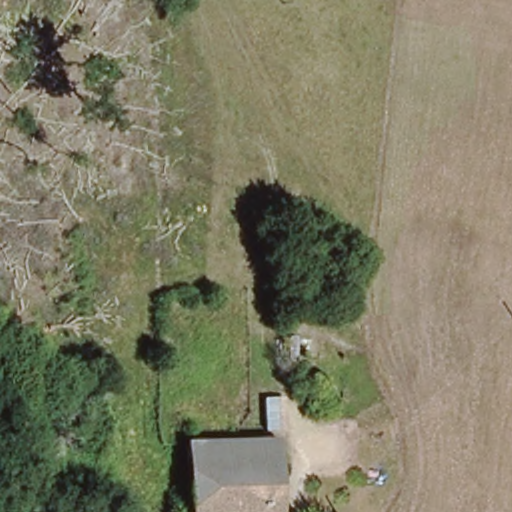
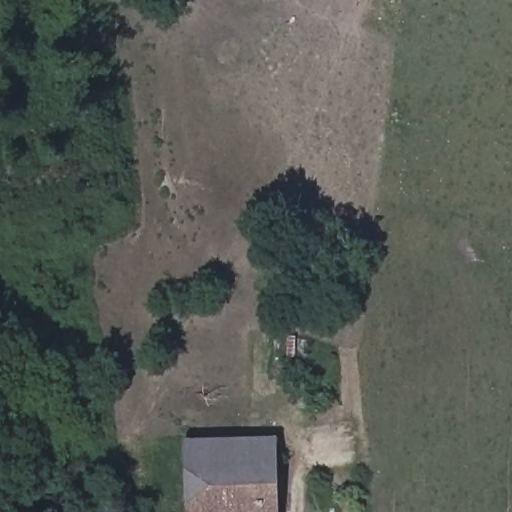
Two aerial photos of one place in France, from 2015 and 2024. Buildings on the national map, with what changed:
unchanged [(267,512),(182,512),(175,441),(267,436),(267,512)]

